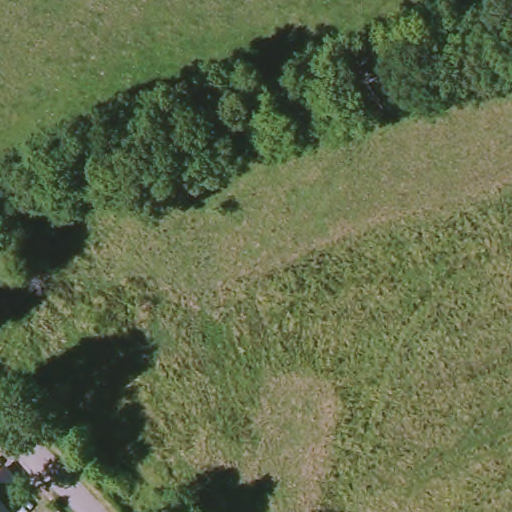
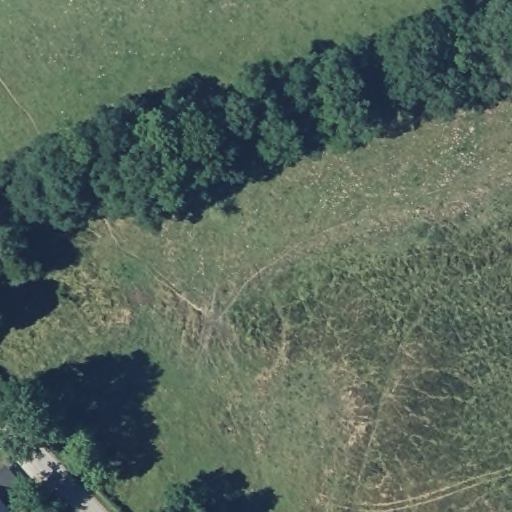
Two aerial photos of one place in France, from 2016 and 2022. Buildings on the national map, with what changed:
unchanged [(9,512),(0,512),(0,501),(9,512)]

